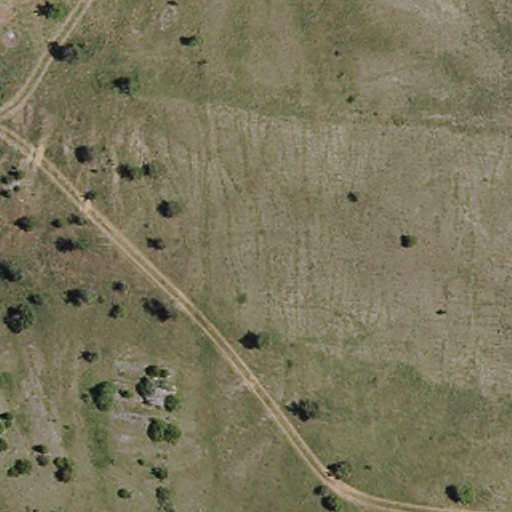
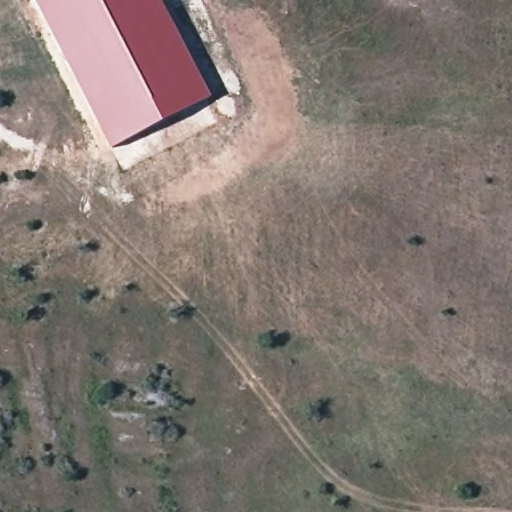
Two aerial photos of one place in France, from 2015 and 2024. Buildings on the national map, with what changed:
new [(210,98),(110,148),(33,0),(158,0),(210,98)]

